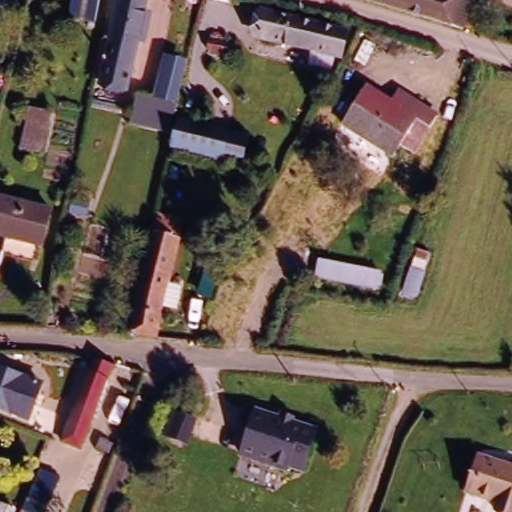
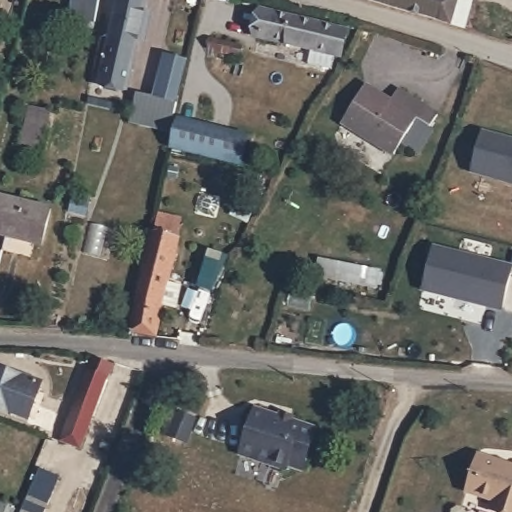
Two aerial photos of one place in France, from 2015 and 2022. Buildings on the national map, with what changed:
unchanged [(67,17),(71,0),(99,0),(95,22),(67,17)]
unchanged [(102,45),(110,46),(120,0),(148,0),(135,57),(127,92),(100,87),(94,85),(97,65),(102,45)]
unchanged [(465,0),(458,27),(375,0),(465,0)]
unchanged [(347,32),(340,57),(335,56),(332,70),(307,65),(311,51),(257,37),(264,12),(347,32)]
unchanged [(224,42),(241,47),(238,57),(222,53),(207,50),(210,39),(224,42)]
unchanged [(164,59),(178,62),(168,103),(172,104),(165,132),(125,124),(131,95),(154,100),(164,59)]
unchanged [(442,110),(419,147),(405,140),(399,151),(347,118),(370,82),(397,99),(405,87),(442,110)]
unchanged [(51,108),(42,147),(20,142),(29,103),(51,108)]
unchanged [(165,148),(172,119),(206,127),(199,157),(165,148)]
unchanged [(243,137),(235,166),(199,157),(206,127),(243,137)]
new [(481,131),(503,137),(502,139),(512,141),(512,183),(470,172),(481,131)]
unchanged [(41,246),(0,236),(0,197),(50,210),(41,246)]
unchanged [(88,201),(85,216),(70,213),(73,198),(88,201)]
unchanged [(170,274),(155,337),(130,332),(152,234),(154,234),(158,217),(172,220),(180,222),(178,239),(169,273),(170,274)]
new [(435,246),(512,265),(512,271),(503,307),(457,296),(457,298),(424,290),(435,246)]
unchanged [(404,291),(412,268),(418,249),(430,252),(423,272),(416,295),(404,291)]
unchanged [(220,276),(203,269),(209,251),(227,257),(220,276)]
unchanged [(381,293),(320,281),(324,265),(385,277),(381,293)]
unchanged [(62,441),(95,359),(112,367),(107,380),(80,448),(62,441)]
unchanged [(0,408),(0,369),(42,383),(28,419),(0,408)]
unchanged [(310,431),(298,469),(284,465),(282,468),(278,471),(265,467),(263,462),(235,453),(249,412),(272,419),(274,417),(275,412),(289,417),(287,421),(287,423),(310,431)]
unchanged [(490,511),(492,503),(466,494),(460,492),(472,456),(478,458),(512,469),(512,512),(494,512),(490,511)]
unchanged [(54,483),(41,512),(19,512),(35,474),(54,483)]
unchanged [(12,508),(10,512),(0,512),(0,506),(1,504),(12,508)]

